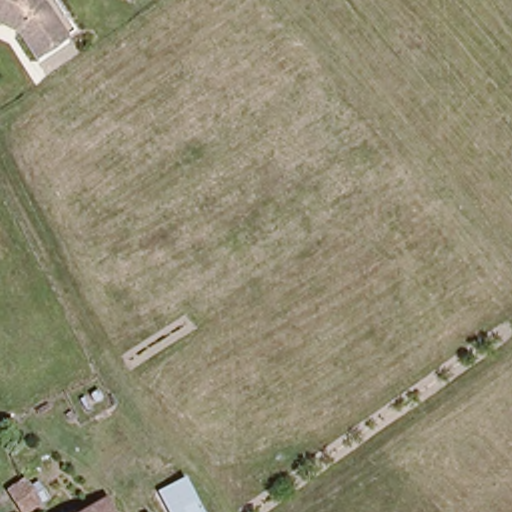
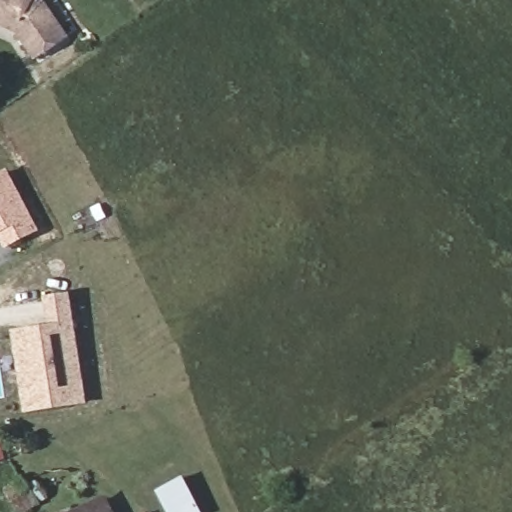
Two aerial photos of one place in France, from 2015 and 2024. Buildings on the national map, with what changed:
unchanged [(39,0),(66,30),(34,55),(15,31),(13,29),(0,23),(0,0),(39,0)]
new [(7,170),(40,231),(5,249),(0,239),(0,174),(7,170)]
new [(10,330),(50,325),(45,296),(71,292),(88,404),(22,415),(10,330)]
unchanged [(147,477),(175,461),(202,512),(165,512),(147,477)]
unchanged [(25,475),(40,502),(20,511),(6,486),(25,475)]
unchanged [(107,503),(111,512),(90,512),(107,503)]

